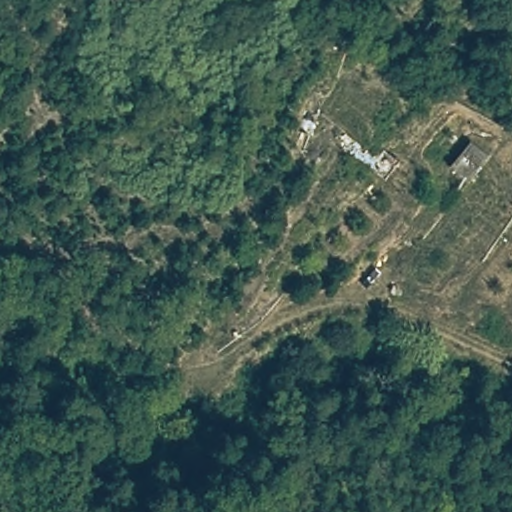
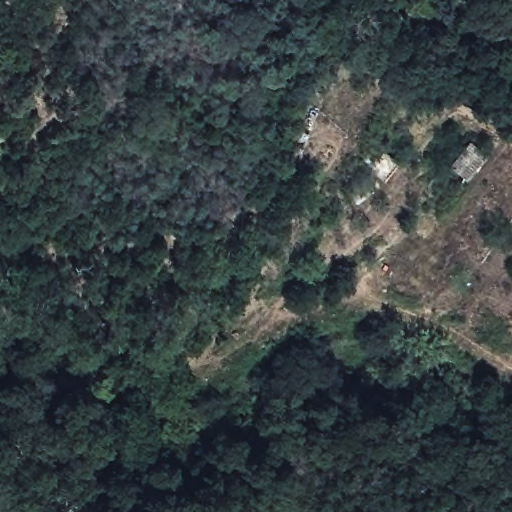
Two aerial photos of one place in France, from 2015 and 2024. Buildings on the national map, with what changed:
unchanged [(495,159),(468,186),(450,170),(471,144),(495,159)]

